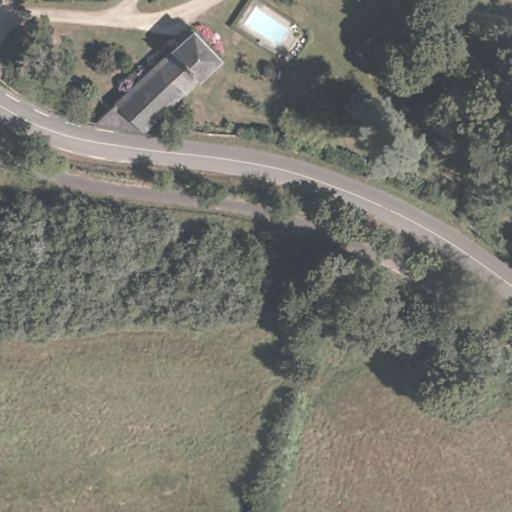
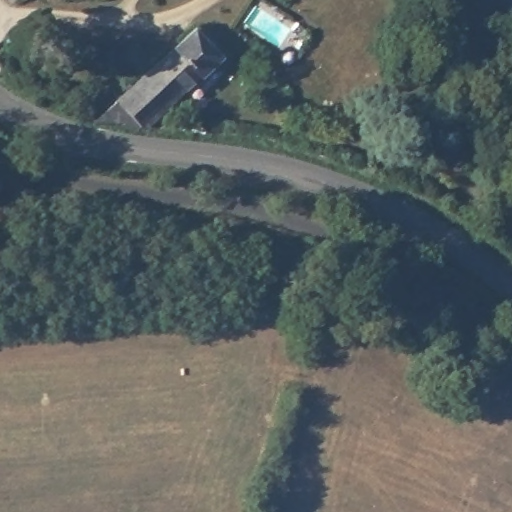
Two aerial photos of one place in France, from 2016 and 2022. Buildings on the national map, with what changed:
unchanged [(191,22),(219,50),(145,123),(97,115),(191,22)]

